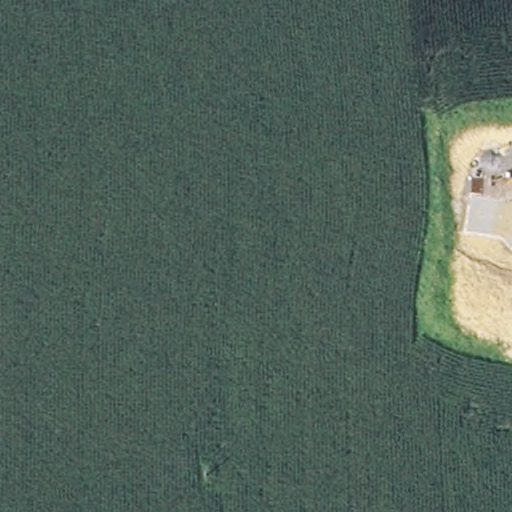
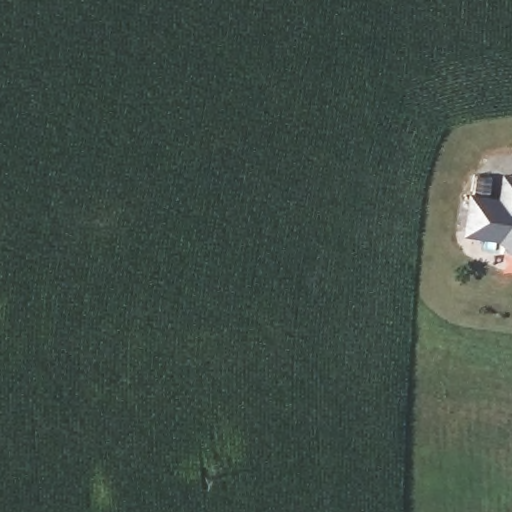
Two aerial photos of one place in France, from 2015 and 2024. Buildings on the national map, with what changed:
unchanged [(512,249),(511,249),(501,238),(466,234),(470,196),(512,201),(512,249)]

